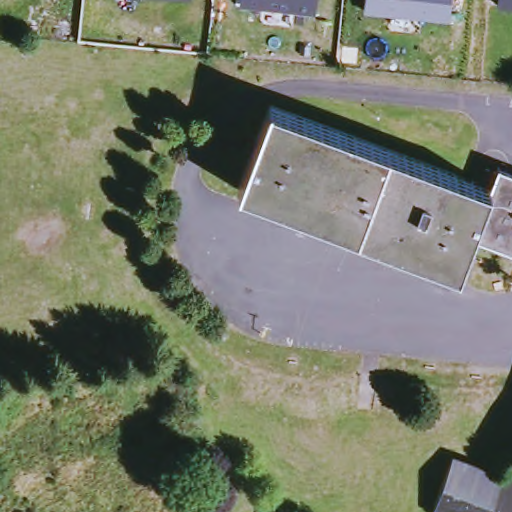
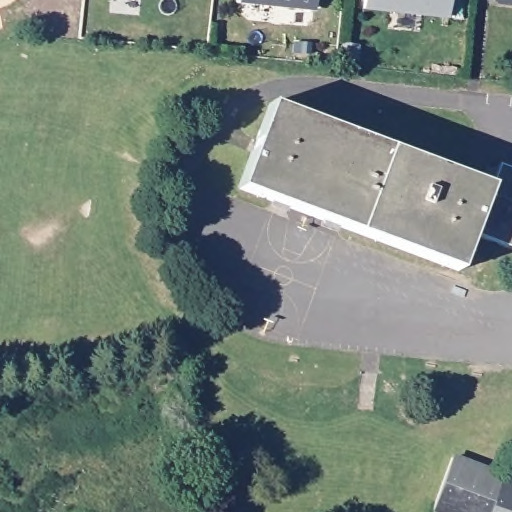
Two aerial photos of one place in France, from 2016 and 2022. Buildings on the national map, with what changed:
unchanged [(242,5),(243,0),(317,0),(315,14),(242,5)]
unchanged [(359,10),(360,0),(446,0),(445,19),(359,10)]
unchanged [(497,6),(497,0),(512,0),(512,8),(497,6)]
unchanged [(480,179),(485,162),(496,166),(499,160),(512,165),(512,249),(467,231),(455,265),(233,176),(265,93),(480,179)]
unchanged [(512,494),(512,512),(439,512),(427,507),(447,455),(499,475),(494,486),(512,494)]

